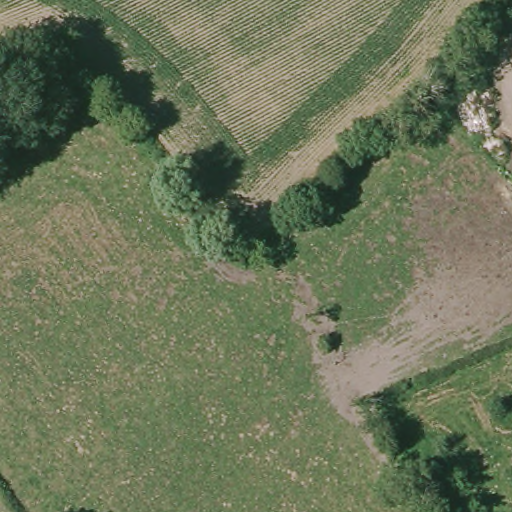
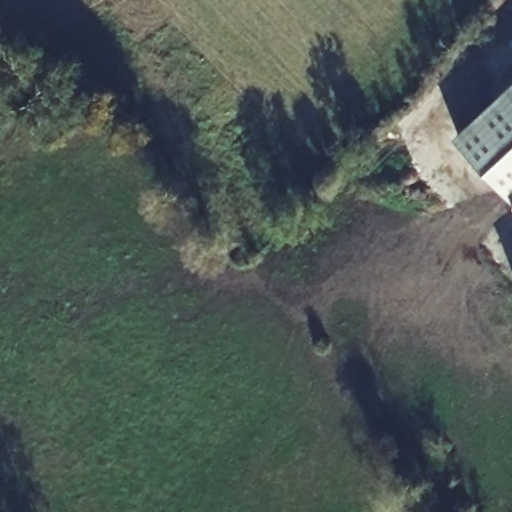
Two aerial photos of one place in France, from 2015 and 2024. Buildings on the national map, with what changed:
new [(454,134),(512,80),(512,195),(454,134)]

